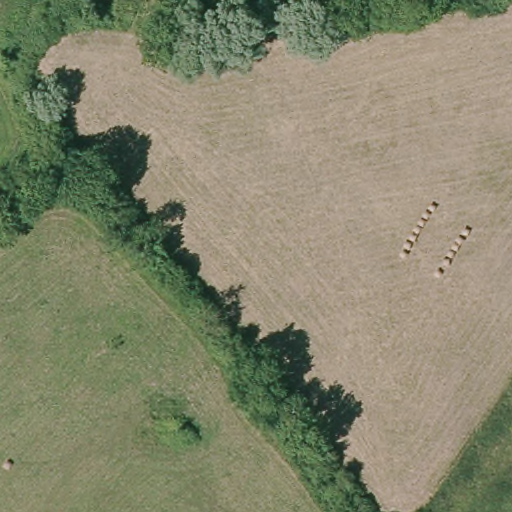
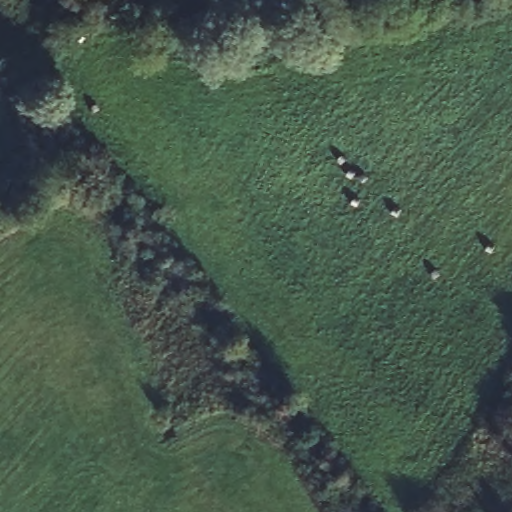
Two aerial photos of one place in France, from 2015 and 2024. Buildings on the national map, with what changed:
[]

